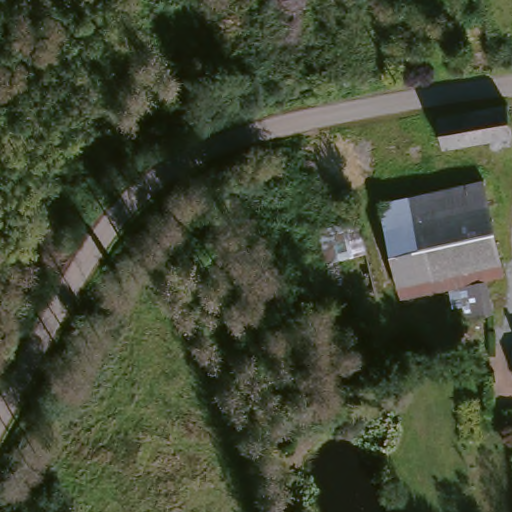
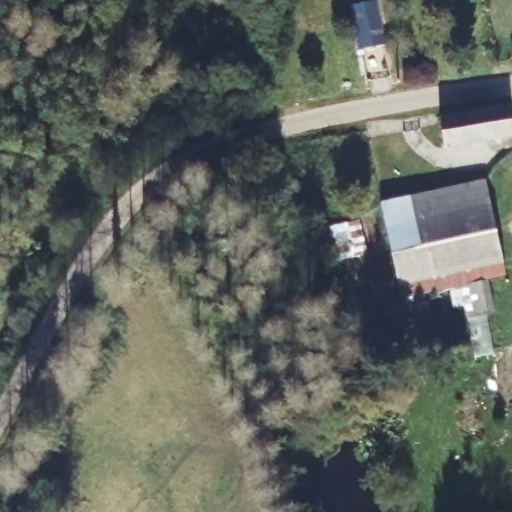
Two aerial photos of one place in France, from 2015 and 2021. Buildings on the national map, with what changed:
new [(352,5),(378,0),(385,45),(359,50),(352,5)]
unchanged [(437,146),(434,130),(432,116),(503,106),(509,132),(437,146)]
unchanged [(486,282),(490,317),(456,325),(448,291),(400,303),(378,205),(479,183),(500,280),(486,282)]

